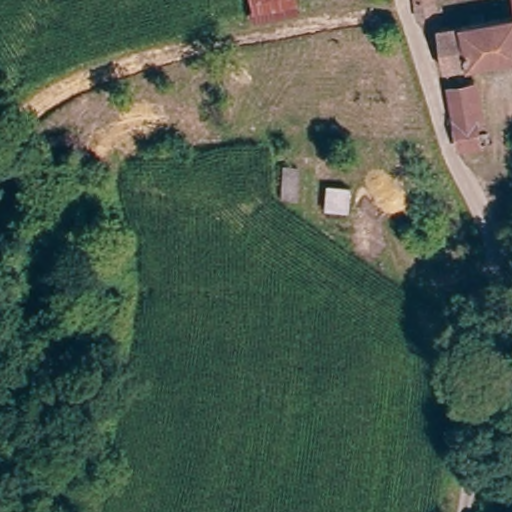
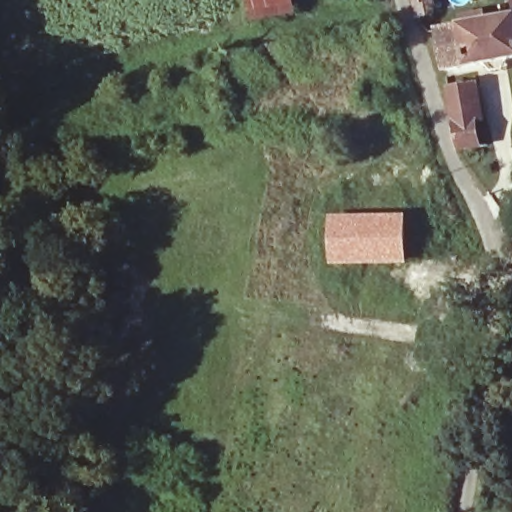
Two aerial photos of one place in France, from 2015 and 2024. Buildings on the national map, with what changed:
unchanged [(249,16),(246,0),(294,0),(295,9),(249,16)]
unchanged [(408,0),(429,0),(431,11),(411,16),(408,0)]
unchanged [(444,69),(434,26),(512,13),(512,57),(444,69)]
unchanged [(481,149),(460,152),(451,91),(470,88),(481,149)]
new [(407,214),(407,265),(331,266),(329,214),(407,214)]

